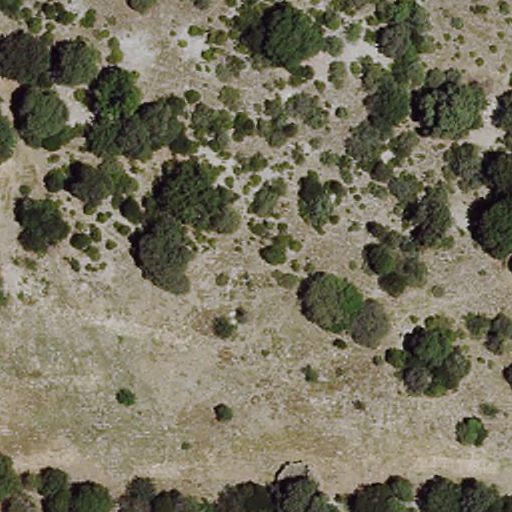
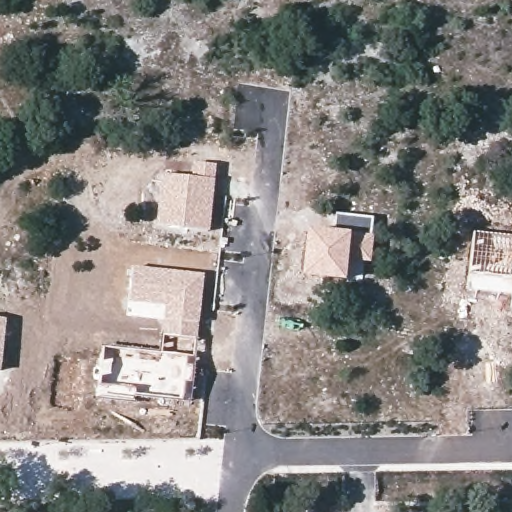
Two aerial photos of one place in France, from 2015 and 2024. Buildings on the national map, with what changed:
new [(161,173),(189,175),(191,160),(216,163),(210,230),(155,224),(161,173)]
new [(333,229),(334,212),(372,216),(372,233),(371,263),(347,261),(344,281),(299,276),(303,227),(333,229)]
new [(512,278),(469,273),(473,233),(512,236),(512,278)]
new [(130,265),(204,273),(195,353),(176,351),(177,337),(162,335),(163,306),(152,305),(127,303),(130,265)]
new [(7,318),(2,369),(0,369),(0,317),(7,318)]
new [(96,370),(102,345),(176,351),(195,353),(191,401),(117,400),(94,398),(96,370)]

